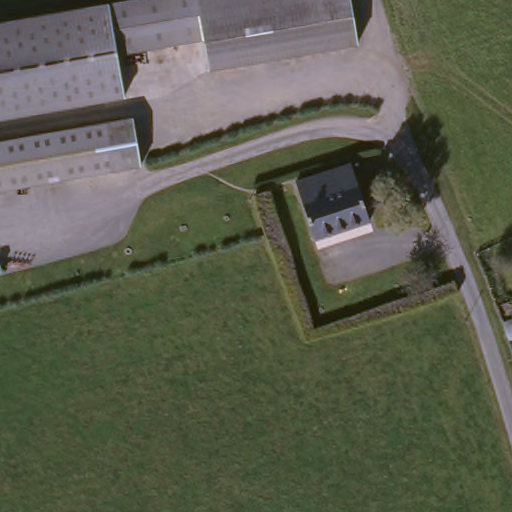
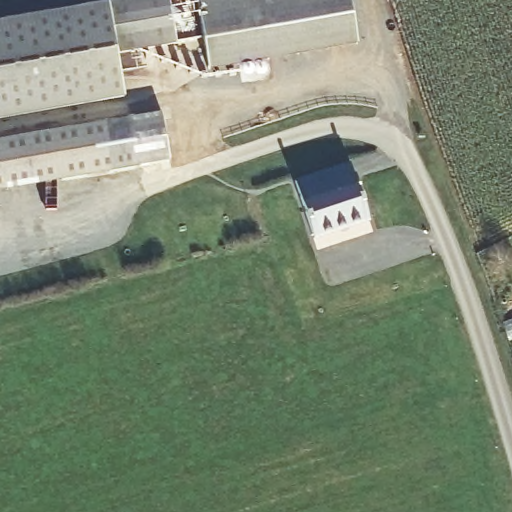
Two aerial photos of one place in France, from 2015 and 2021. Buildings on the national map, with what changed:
unchanged [(123,92),(0,114),(0,21),(117,0),(193,0),(199,33),(114,49),(123,92)]
unchanged [(205,65),(199,33),(193,0),(347,0),(354,39),(205,65)]
unchanged [(134,118),(142,165),(0,190),(0,142),(134,118)]
unchanged [(351,160),(370,216),(314,235),(296,177),(351,160)]

